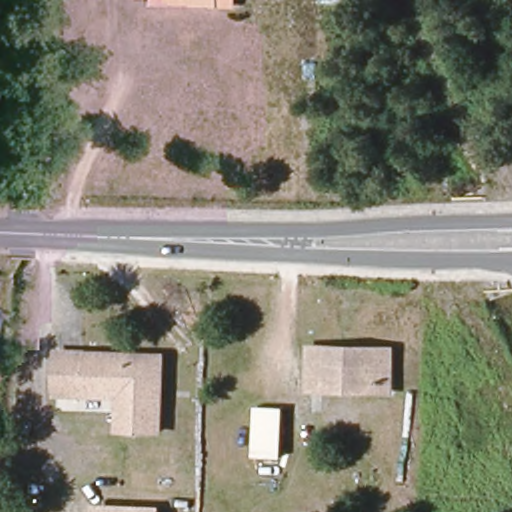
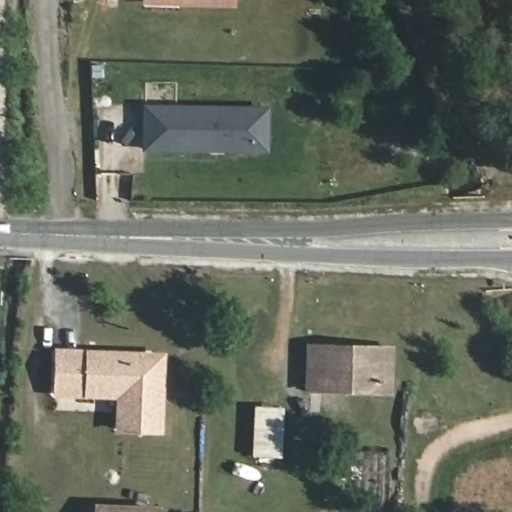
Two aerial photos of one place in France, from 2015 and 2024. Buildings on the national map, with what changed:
unchanged [(140,7),(141,3),(123,1),(123,0),(214,0),(214,9),(140,7)]
new [(143,104),(270,106),(269,154),(142,151),(143,104)]
unchanged [(387,389),(377,389),(305,388),(305,344),(378,344),(387,344),(387,389)]
unchanged [(152,359),(159,367),(157,435),(117,436),(119,397),(55,395),(59,356),(152,359)]
unchanged [(286,406),(282,458),(254,457),(256,406),(286,406)]
unchanged [(161,504),(160,512),(92,512),(92,503),(161,504)]

